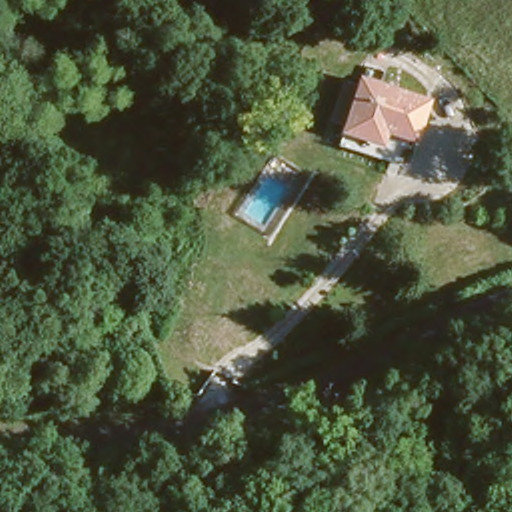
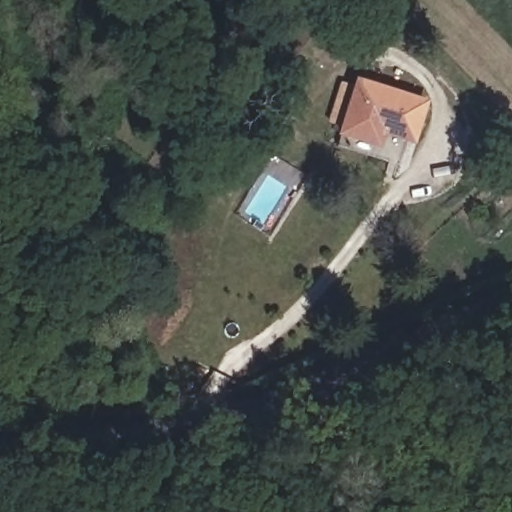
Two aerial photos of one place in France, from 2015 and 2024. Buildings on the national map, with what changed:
unchanged [(363,139),(340,132),(355,76),(426,95),(416,135),(384,127),(380,143),(363,139)]

